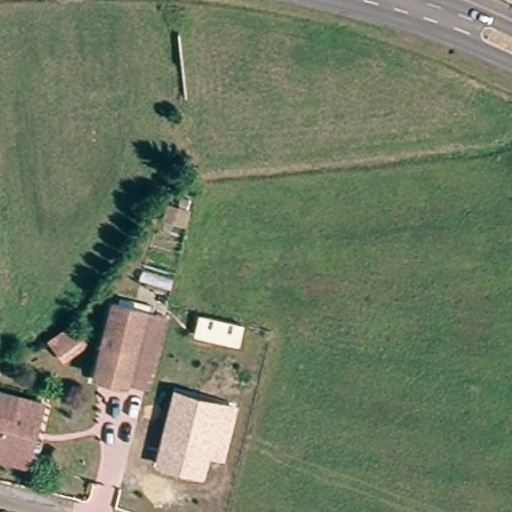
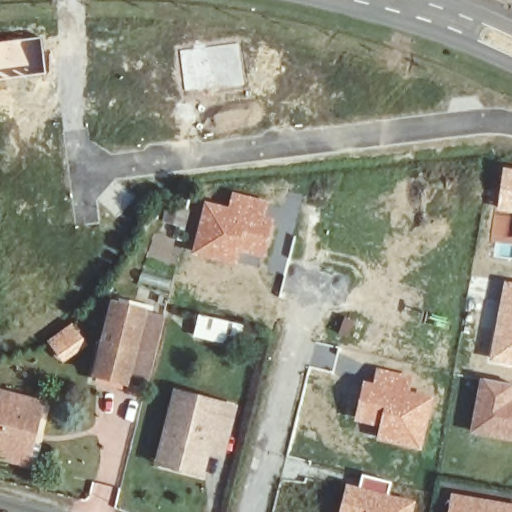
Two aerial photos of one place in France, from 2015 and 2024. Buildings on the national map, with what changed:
new [(0,43),(40,38),(46,74),(0,80),(0,43)]
new [(239,43),(245,85),(185,92),(180,50),(239,43)]
new [(498,210),(504,168),(512,169),(512,212),(498,210)]
new [(235,265),(191,256),(205,202),(229,208),(233,192),(270,201),(265,217),(274,219),(263,260),(239,254),(235,265)]
new [(505,285),(512,293),(512,365),(490,361),(505,285)]
unchanged [(139,307),(120,380),(89,372),(107,300),(126,305),(127,300),(140,302),(139,307)]
unchanged [(154,327),(140,385),(120,380),(139,307),(158,312),(154,327)]
new [(201,317),(240,326),(235,345),(196,336),(201,317)]
unchanged [(61,356),(53,344),(74,329),(82,341),(61,356)]
new [(413,377),(410,391),(435,398),(421,451),(376,441),(380,427),(354,421),(364,381),(374,383),(376,368),(413,377)]
new [(470,433),(481,376),(512,385),(512,441),(470,433)]
unchanged [(239,407),(226,460),(212,457),(206,480),(155,468),(174,389),(239,407)]
unchanged [(0,452),(0,391),(46,403),(40,428),(30,460),(25,459),(0,452)]
new [(347,484),(365,488),(366,480),(387,485),(385,493),(415,501),(413,512),(340,512),(347,484)]
new [(512,504),(512,512),(450,512),(453,492),(512,504)]

